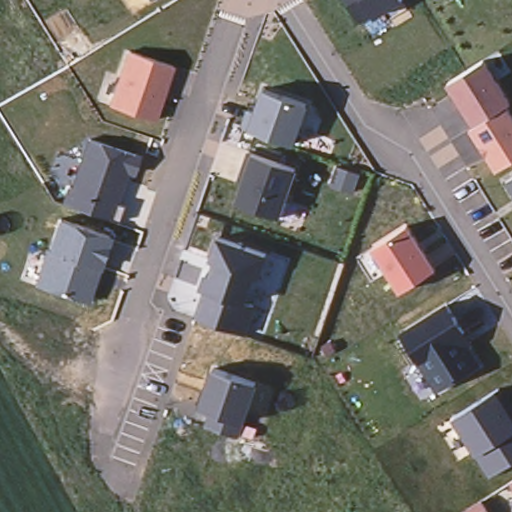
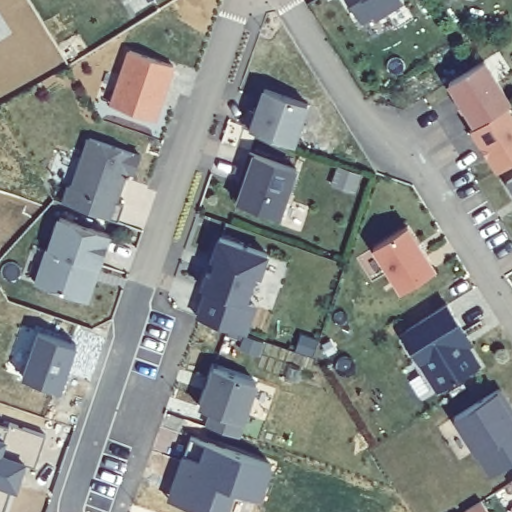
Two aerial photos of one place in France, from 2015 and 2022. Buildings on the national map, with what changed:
unchanged [(361,21),(348,0),(399,0),(361,21)]
unchanged [(157,120),(111,105),(130,49),(175,65),(157,120)]
unchanged [(471,129),(475,126),(449,84),(487,60),(512,101),(512,104),(508,106),(512,113),(512,163),(496,172),(471,129)]
unchanged [(295,144),(250,127),(264,86),(310,104),(295,144)]
unchanged [(134,174),(126,171),(116,203),(123,206),(118,221),(64,204),(87,135),(140,153),(134,174)]
unchanged [(281,216),(236,201),(251,153),(296,167),(281,216)]
unchanged [(512,179),(512,194),(505,183),(512,179)]
unchanged [(89,300),(36,284),(56,217),(111,235),(89,300)]
unchanged [(400,293),(374,247),(409,225),(437,270),(400,293)]
unchanged [(262,276),(257,275),(248,305),(253,307),(245,333),(195,316),(221,237),(269,253),(262,276)]
unchanged [(437,391),(401,333),(447,305),(482,365),(437,391)]
new [(76,352),(62,398),(23,383),(38,337),(76,352)]
unchanged [(242,425),(240,436),(207,424),(209,413),(198,409),(211,366),(259,383),(242,425)]
unchanged [(454,418),(498,391),(512,412),(512,461),(491,475),(454,418)]
new [(6,512),(0,512),(0,426),(9,429),(10,426),(47,438),(36,470),(25,467),(17,492),(13,490),(6,512)]
new [(272,467),(260,501),(234,492),(227,512),(207,512),(171,500),(191,440),(272,467)]
unchanged [(512,483),(512,487),(510,484),(512,483)]

